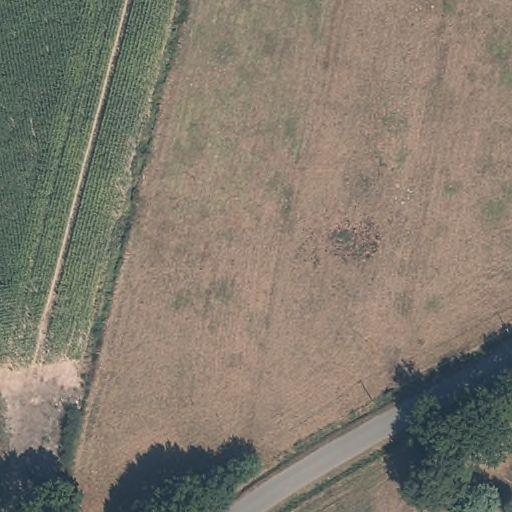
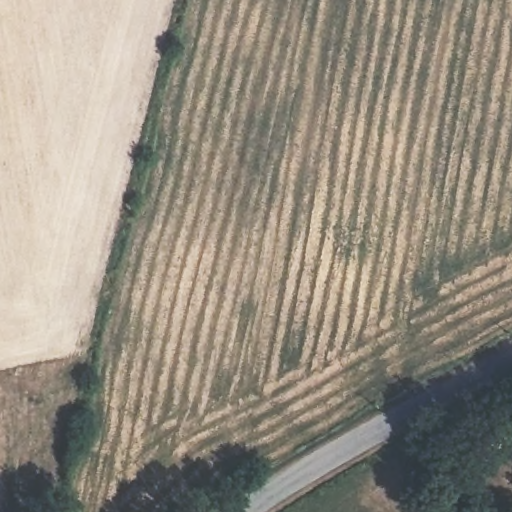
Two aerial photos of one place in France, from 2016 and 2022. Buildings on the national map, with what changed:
unchanged [(491,512),(484,512),(486,509),(491,512)]

